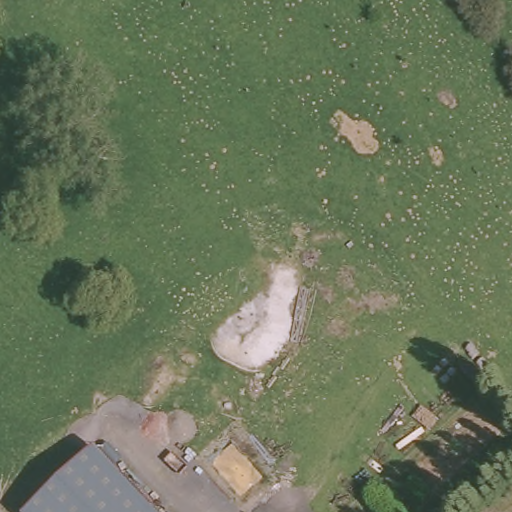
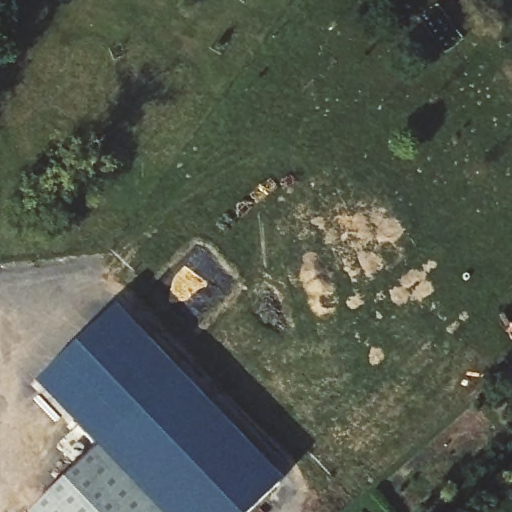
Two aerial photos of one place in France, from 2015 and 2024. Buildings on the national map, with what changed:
new [(96,448),(32,385),(113,309),(279,483),(249,512),(156,512),(96,448)]
unchanged [(156,512),(27,512),(96,448),(156,512)]

